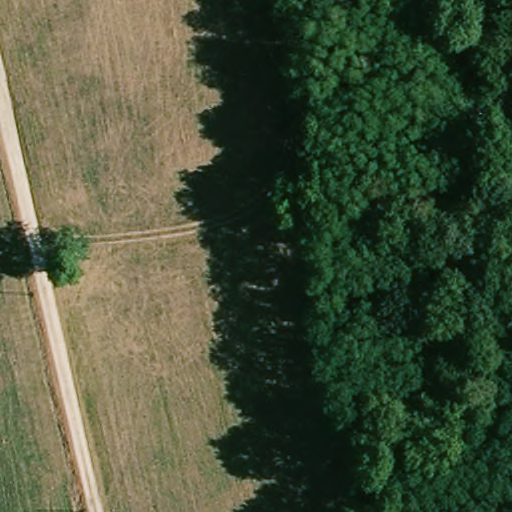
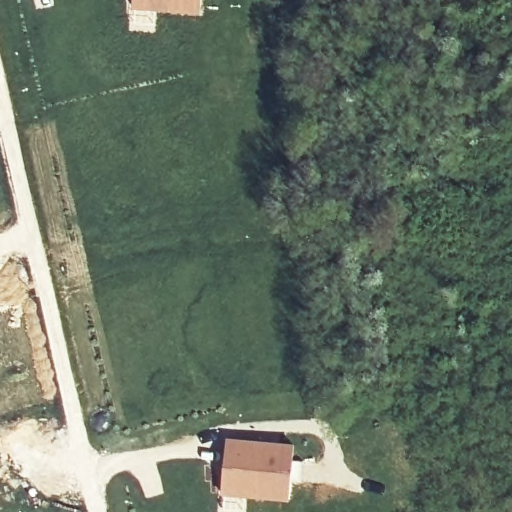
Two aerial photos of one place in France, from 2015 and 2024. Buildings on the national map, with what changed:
new [(202,13),(132,9),(133,0),(202,0),(202,13)]
unchanged [(295,214),(275,218),(271,196),(292,193),(295,214)]
new [(290,501),(222,495),(227,438),(295,445),(290,501)]
new [(0,504),(0,500),(1,504),(0,504)]

